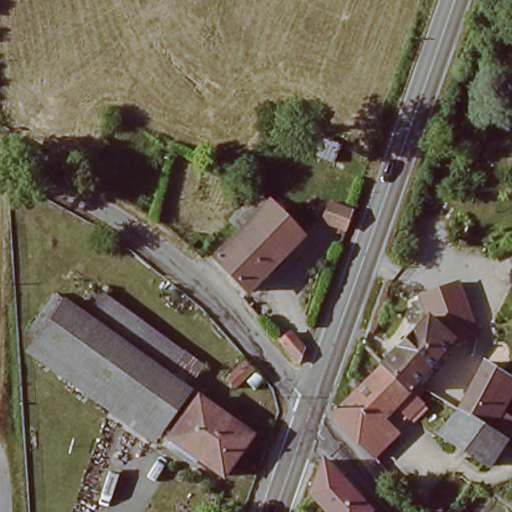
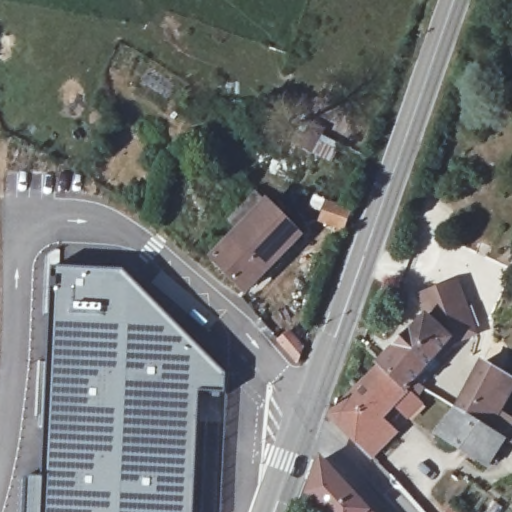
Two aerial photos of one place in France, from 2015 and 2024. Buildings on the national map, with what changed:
unchanged [(233,251),(226,242),(241,221),(253,230),(271,204),(304,231),(257,293),(256,291),(226,262),(233,251)]
unchanged [(319,225),(326,206),(351,217),(344,236),(319,225)]
new [(25,476),(46,476),(54,265),(125,268),(228,373),(226,392),(202,392),(195,512),(25,512),(25,476)]
demolished [(31,343),(58,301),(79,315),(92,295),(180,352),(164,376),(182,386),(154,425),(31,343)]
unchanged [(376,365),(429,317),(450,341),(409,388),(379,368),(376,365)]
unchanged [(304,331),(316,346),(313,357),(298,341),(304,331)]
unchanged [(467,405),(489,360),(508,373),(493,402),(506,410),(498,425),(467,405)]
unchanged [(379,425),(389,438),(373,457),(333,415),(379,368),(409,388),(379,425)]
demolished [(169,435),(197,394),(250,432),(223,470),(169,435)]
unchanged [(512,434),(512,456),(509,455),(503,465),(451,437),(459,416),(447,412),(454,402),(467,405),(498,425),(512,434)]
unchanged [(307,496),(319,462),(357,497),(372,512),(325,512),(307,496)]

